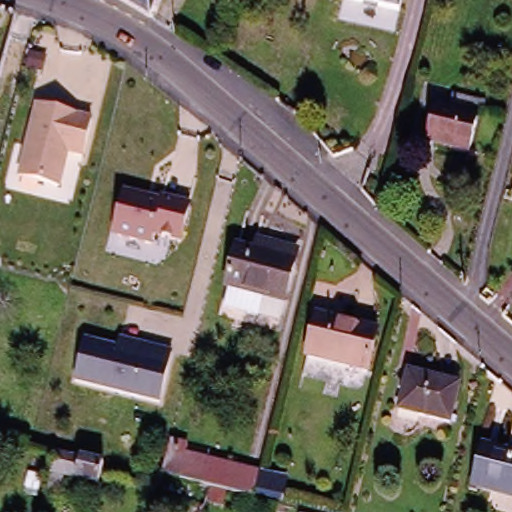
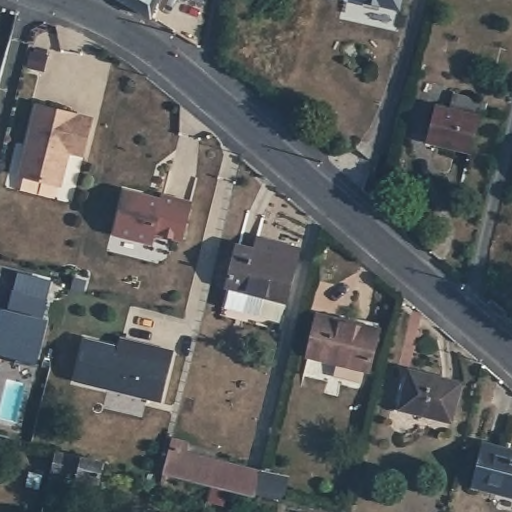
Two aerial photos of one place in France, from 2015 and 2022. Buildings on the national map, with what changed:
unchanged [(121,0),(151,0),(145,15),(121,0)]
unchanged [(367,0),(400,0),(398,8),(367,0)]
unchanged [(436,111),(449,114),(453,99),(483,106),(479,121),(471,156),(427,145),(436,111)]
unchanged [(95,119),(85,160),(70,157),(64,190),(23,180),(39,105),(95,119)]
unchanged [(155,243),(122,235),(119,229),(127,191),(143,195),(145,198),(154,200),(154,198),(161,199),(162,195),(190,202),(182,239),(157,233),(155,243)]
unchanged [(255,315),(220,305),(226,284),(224,284),(235,247),(254,252),(258,240),(298,252),(295,263),(284,301),(278,321),(255,315)]
new [(9,312),(14,292),(47,300),(43,320),(48,322),(35,369),(16,364),(17,358),(0,354),(0,316),(1,317),(9,312)]
unchanged [(362,369),(301,354),(312,313),(373,329),(362,369)]
unchanged [(86,337),(119,344),(121,335),(140,340),(173,348),(160,399),(76,378),(86,337)]
unchanged [(450,419),(399,406),(408,367),(460,380),(450,419)]
unchanged [(474,486),(484,444),(512,450),(512,495),(474,486)]
unchanged [(213,458),(206,482),(203,482),(157,470),(164,445),(213,458)]
unchanged [(100,459),(97,469),(95,479),(45,469),(50,447),(100,459)]
unchanged [(255,469),(250,486),(249,493),(206,482),(213,458),(255,469)]

